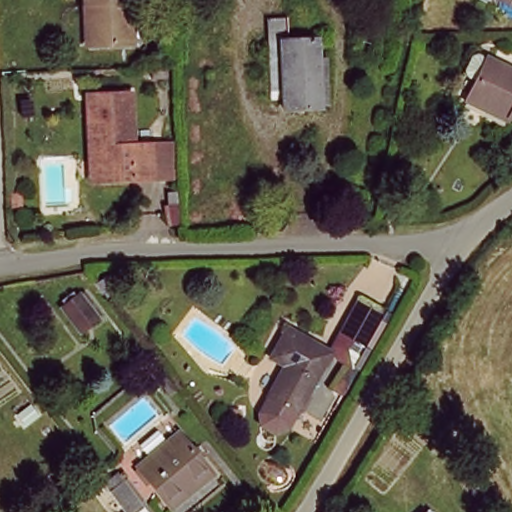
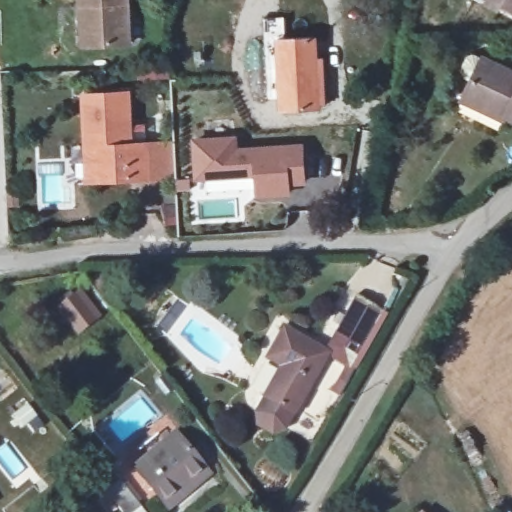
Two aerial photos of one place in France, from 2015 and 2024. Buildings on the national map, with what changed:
unchanged [(81,0),(126,0),(128,41),(89,43),(82,43),(81,3),(81,0)]
unchanged [(492,0),(489,4),(483,0),(492,0)]
unchanged [(500,0),(512,0),(512,8),(500,0)]
unchanged [(327,98),(328,105),(291,106),(291,91),(276,91),(274,35),(325,33),(326,52),(336,52),(338,98),(327,98)]
unchanged [(470,98),(472,91),(479,77),(470,73),(465,65),(476,49),(489,55),(512,66),(512,111),(510,116),(470,98)]
unchanged [(158,170),(141,171),(141,174),(125,175),(124,172),(91,174),(82,174),(81,129),(80,93),(121,91),(123,141),(140,140),(140,145),(156,144),(158,170)]
new [(200,180),(198,143),(238,141),(239,153),(305,151),(306,187),(290,187),(291,197),(260,198),(259,178),(200,180)]
unchanged [(390,303),(349,352),(335,341),(331,328),(368,284),(390,303)]
unchanged [(94,328),(78,341),(57,313),(73,302),(94,328)]
unchanged [(331,348),(295,412),(261,393),(277,361),(265,355),(284,320),(331,348)]
unchanged [(295,412),(281,438),(249,426),(261,393),(295,412)]
unchanged [(207,468),(168,497),(137,457),(176,427),(207,468)]
unchanged [(146,506),(139,512),(130,512),(119,498),(113,489),(125,479),(146,506)]

